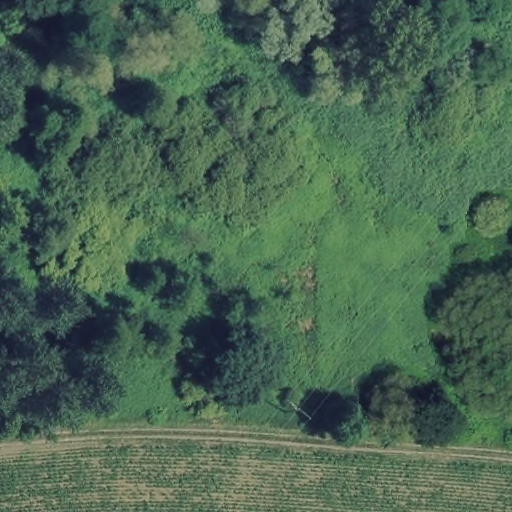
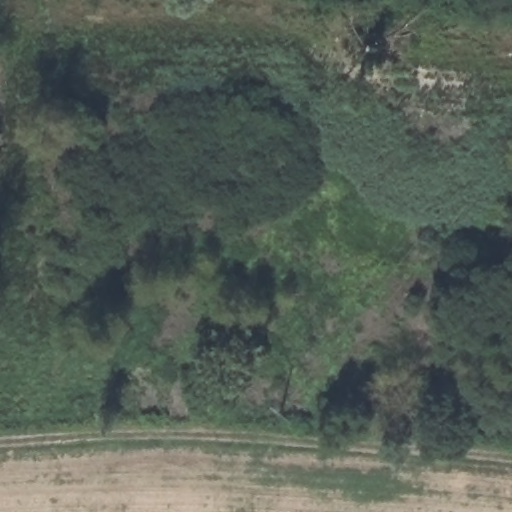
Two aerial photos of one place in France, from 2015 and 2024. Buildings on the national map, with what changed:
[]

